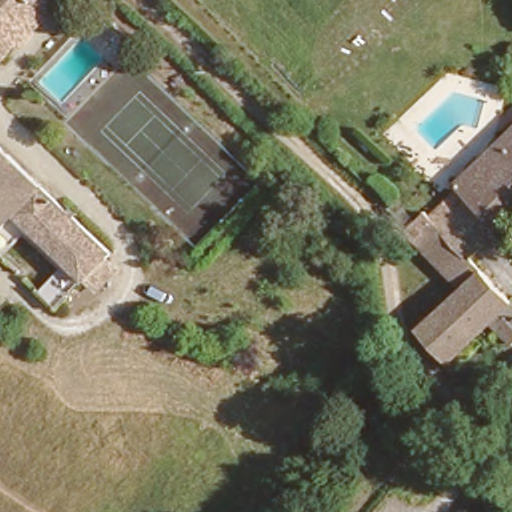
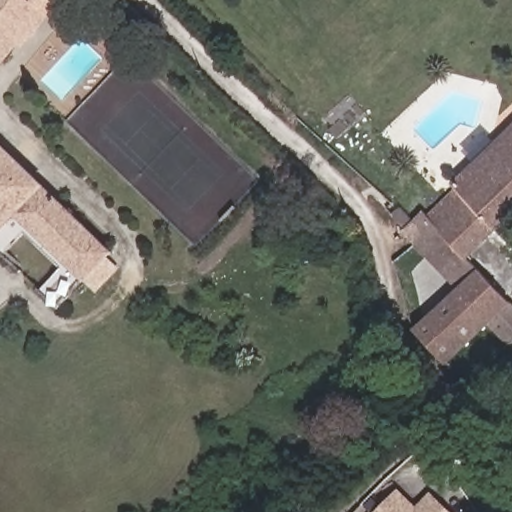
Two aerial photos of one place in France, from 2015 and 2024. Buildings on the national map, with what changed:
unchanged [(0,56),(0,0),(56,0),(50,7),(24,36),(4,59),(0,56)]
unchanged [(491,232),(482,241),(464,259),(476,270),(459,287),(424,250),(421,247),(404,227),(421,209),(429,215),(434,211),(457,190),(458,187),(453,183),(473,164),(512,127),(512,212),(491,232)]
unchanged [(86,282),(74,282),(52,303),(0,253),(0,152),(103,251),(95,260),(103,266),(86,282)]
unchanged [(476,270),(512,305),(512,346),(486,322),(449,362),(418,328),(459,287),(476,270)]
new [(416,507),(430,492),(450,512),(376,512),(399,488),(416,507)]

